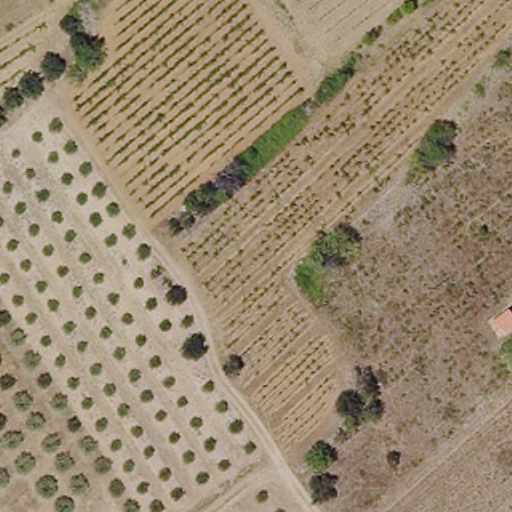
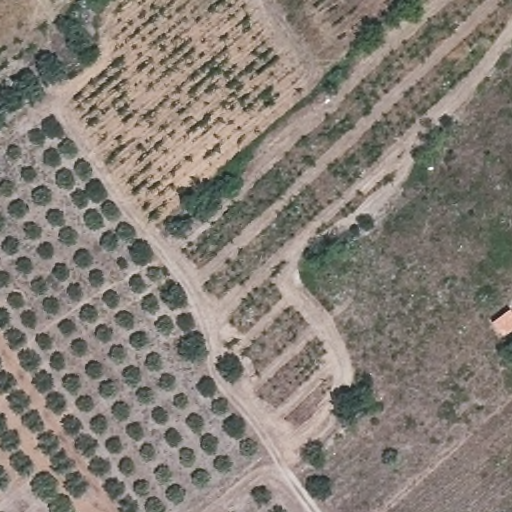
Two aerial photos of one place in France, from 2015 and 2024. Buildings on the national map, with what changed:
unchanged [(503,342),(490,322),(512,309),(512,310),(512,335),(503,342)]

